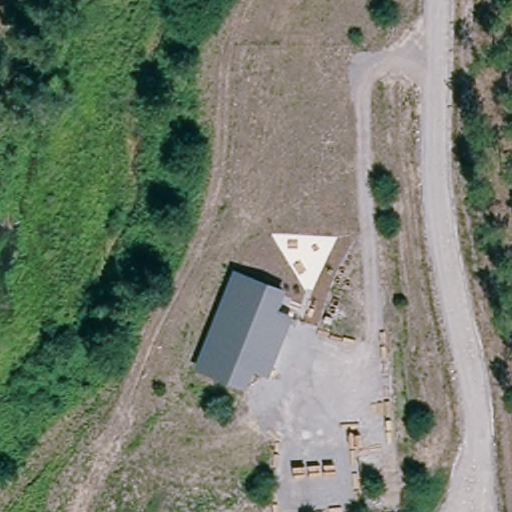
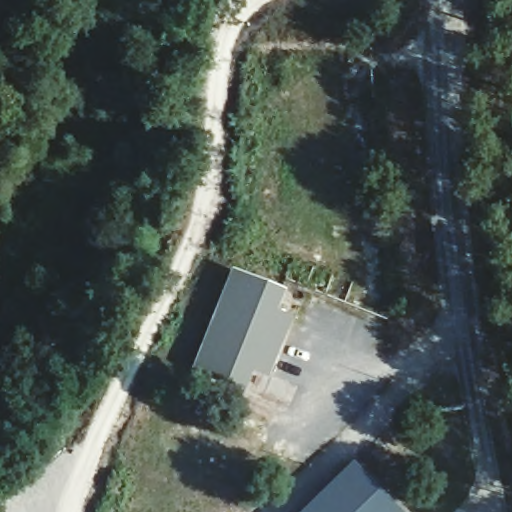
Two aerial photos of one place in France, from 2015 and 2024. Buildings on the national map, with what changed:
unchanged [(269,370),(253,364),(245,384),(199,366),(237,268),(284,287),(276,307),(291,313),(269,370)]
new [(355,462),(403,512),(303,512),(355,462)]

